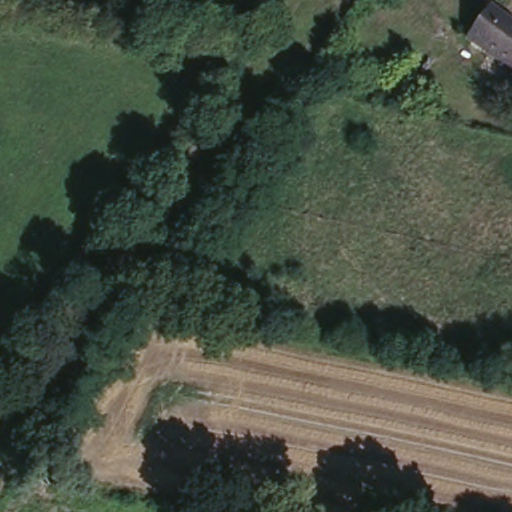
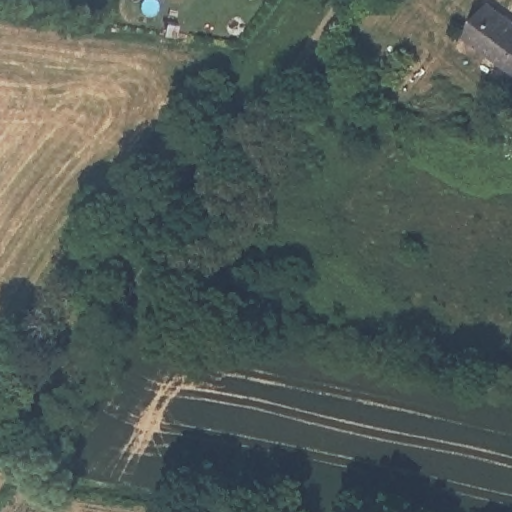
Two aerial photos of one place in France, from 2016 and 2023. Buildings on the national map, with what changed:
unchanged [(512,69),(463,34),(486,1),(512,20),(512,69)]

